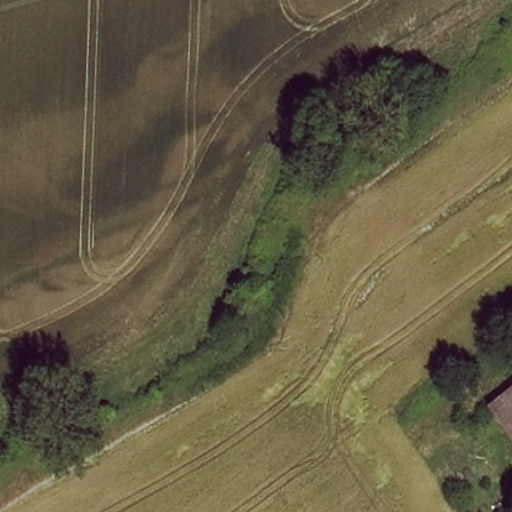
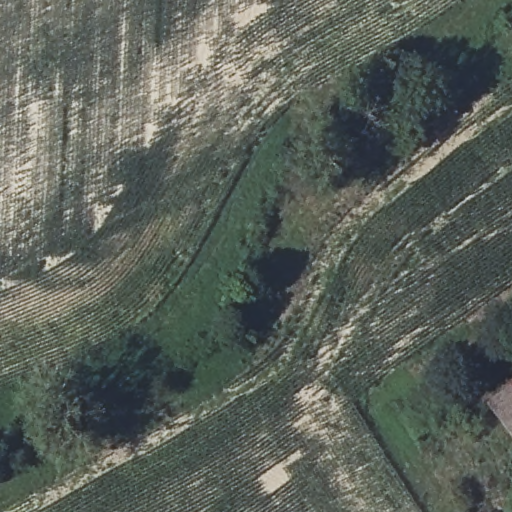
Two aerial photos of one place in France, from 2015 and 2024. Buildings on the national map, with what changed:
unchanged [(492,410),(512,395),(512,443),(492,410)]

